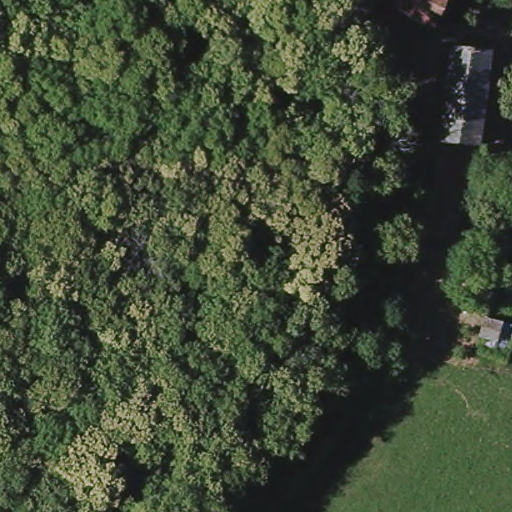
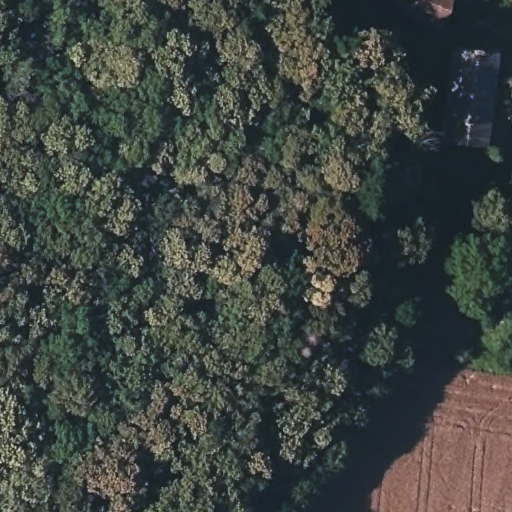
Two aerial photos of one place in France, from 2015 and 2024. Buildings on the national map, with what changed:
unchanged [(376,0),(453,0),(438,32),(376,0)]
unchanged [(483,151),(440,143),(452,51),(499,48),(483,151)]
unchanged [(480,317),(512,324),(505,355),(472,347),(480,317)]

